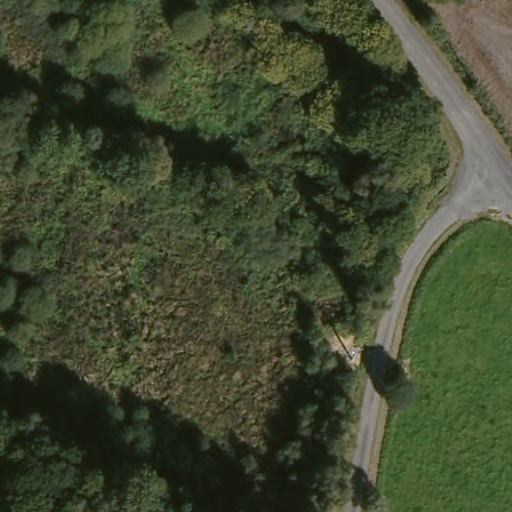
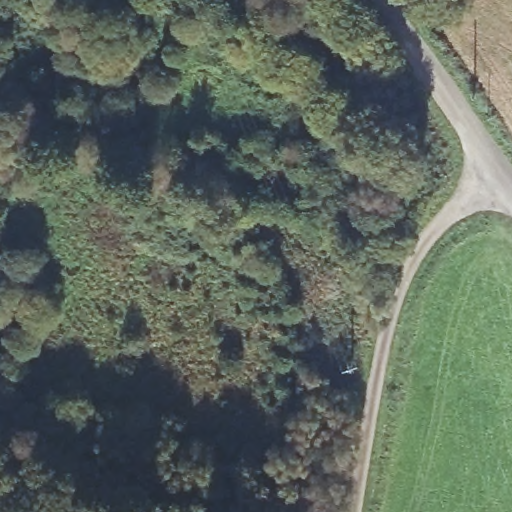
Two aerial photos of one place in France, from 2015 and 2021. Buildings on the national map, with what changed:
unchanged [(421,129),(386,131),(386,128),(381,125),(379,93),(406,89),(414,90),(421,129)]

